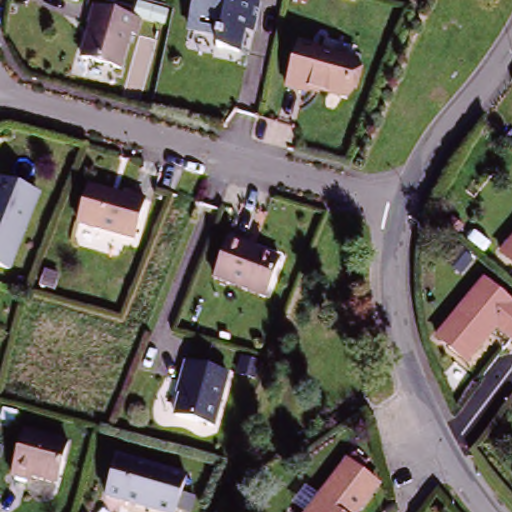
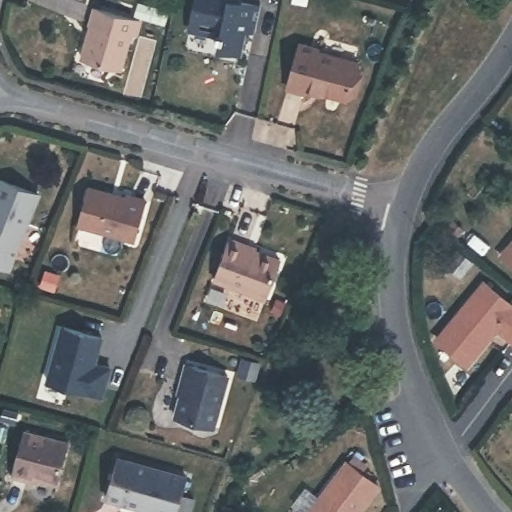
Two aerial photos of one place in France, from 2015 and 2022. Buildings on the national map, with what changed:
unchanged [(239,29),(233,51),(210,47),(212,35),(183,27),(190,0),(234,0),(255,6),(251,22),(250,31),(239,29)]
unchanged [(133,25),(128,38),(124,37),(113,72),(74,61),(83,29),(81,28),(87,10),(133,25)]
unchanged [(297,94),(279,89),(292,44),(310,48),(310,50),(350,62),(340,100),(298,89),(297,94)]
unchanged [(0,267),(0,182),(30,195),(0,267)]
unchanged [(84,186),(121,197),(122,195),(138,200),(126,244),(72,226),(84,186)]
unchanged [(260,299),(208,277),(225,237),(242,244),(240,247),(275,261),(260,299)]
unchanged [(500,262),(512,249),(512,272),(500,262)]
unchanged [(483,287),(512,311),(512,347),(496,333),(466,367),(436,341),(483,287)]
new [(62,325),(100,336),(93,362),(109,366),(101,395),(47,380),(62,325)]
unchanged [(245,367),(241,383),(225,378),(230,362),(245,367)]
unchanged [(165,417),(175,384),(170,382),(175,365),(217,376),(202,428),(165,417)]
unchanged [(53,485),(30,479),(28,483),(8,477),(21,432),(64,444),(53,485)]
unchanged [(169,512),(160,512),(100,495),(112,455),(180,474),(169,512)]
unchanged [(372,493),(359,512),(316,512),(341,475),(372,493)]

